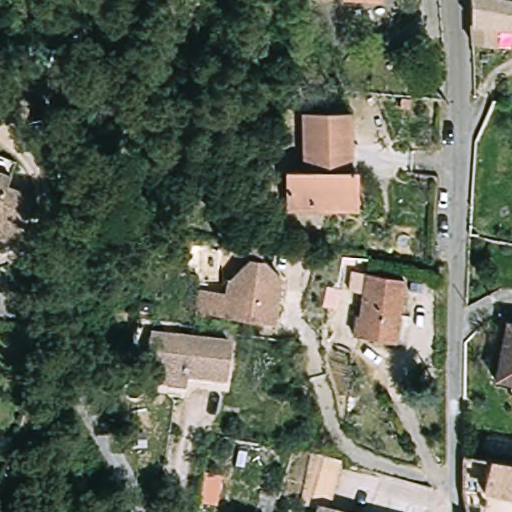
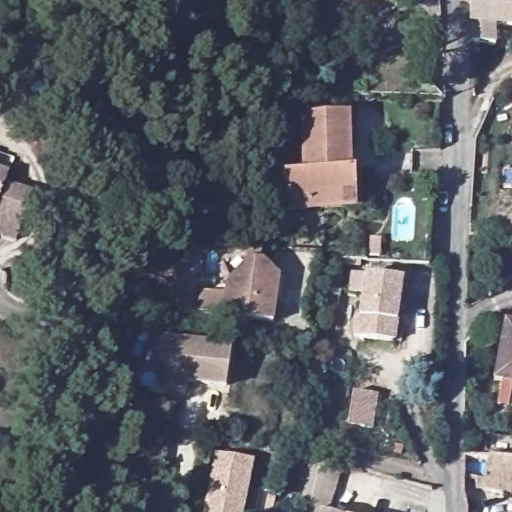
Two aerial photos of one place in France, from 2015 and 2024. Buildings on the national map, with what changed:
unchanged [(499,25),(500,45),(476,42),(474,0),(512,0),(512,27),(499,25)]
unchanged [(401,97),(410,98),(409,107),(400,106),(401,97)]
unchanged [(361,208),(292,210),(291,171),(308,170),(307,114),(355,112),(355,169),(360,169),(361,208)]
unchanged [(10,189),(38,198),(21,246),(0,239),(0,173),(15,178),(10,189)]
unchanged [(345,278),(349,255),(373,259),(372,273),(408,279),(399,341),(359,335),(362,315),(365,316),(370,282),(345,278)]
unchanged [(227,280),(248,258),(263,260),(270,267),(279,275),(276,299),(272,321),(222,314),(227,280)]
unchanged [(512,321),(512,382),(500,379),(510,320),(512,321)]
unchanged [(165,384),(167,370),(150,368),(156,335),(238,347),(232,386),(192,381),(191,388),(165,384)]
new [(354,391),(378,394),(375,429),(350,426),(354,391)]
new [(244,512),(203,512),(215,453),(255,460),(244,512)]
unchanged [(467,455),(512,460),(512,497),(490,491),(490,475),(467,471),(467,455)]
unchanged [(272,512),(255,512),(260,491),(275,495),(272,512)]
unchanged [(332,512),(323,512),(324,509),(332,512)]

